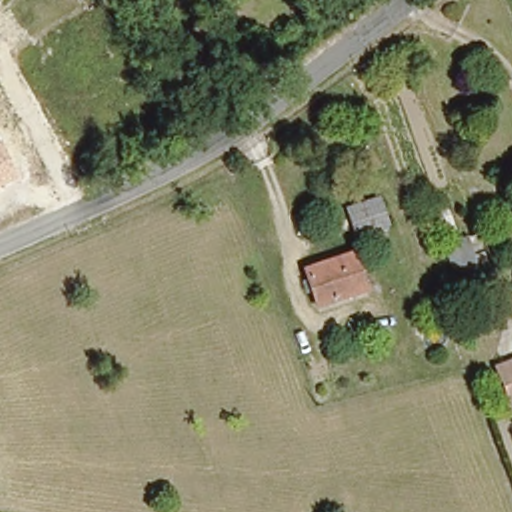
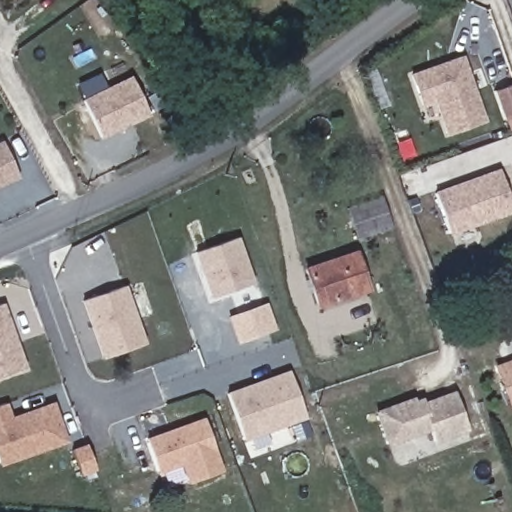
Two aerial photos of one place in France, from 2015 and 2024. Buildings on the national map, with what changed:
new [(466,56),(487,122),(449,132),(438,103),(422,106),(413,72),(466,56)]
new [(102,138),(83,97),(132,76),(149,116),(102,138)]
unchanged [(18,179),(0,187),(0,141),(1,141),(18,179)]
new [(512,198),(512,212),(455,230),(439,192),(502,169),(512,198)]
unchanged [(394,228),(365,239),(353,211),(383,199),(394,228)]
new [(242,237),(258,283),(216,297),(197,252),(242,237)]
unchanged [(365,292),(321,307),(307,272),(352,257),(365,292)]
new [(128,287),(149,346),(107,357),(84,300),(128,287)]
new [(6,305),(29,366),(0,378),(0,307),(6,305)]
unchanged [(494,360),(512,354),(512,399),(507,401),(494,360)]
new [(294,372),(309,416),(249,437),(232,393),(294,372)]
new [(416,400),(424,397),(425,401),(456,390),(471,431),(471,432),(435,443),(431,432),(388,447),(375,411),(414,397),(416,400)]
new [(11,402),(16,416),(58,402),(71,442),(5,466),(0,454),(0,406),(11,402)]
new [(210,416),(227,470),(189,482),(185,468),(164,475),(150,436),(210,416)]

